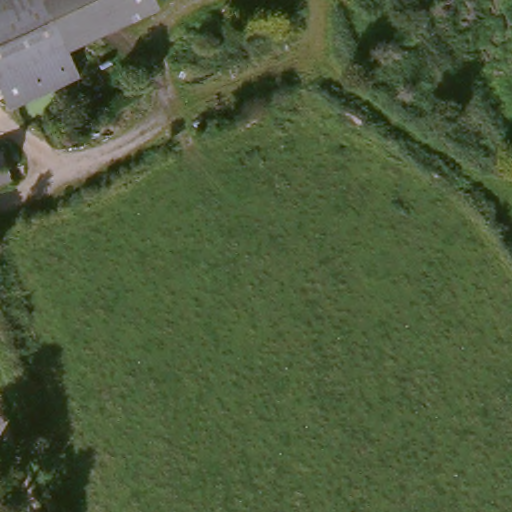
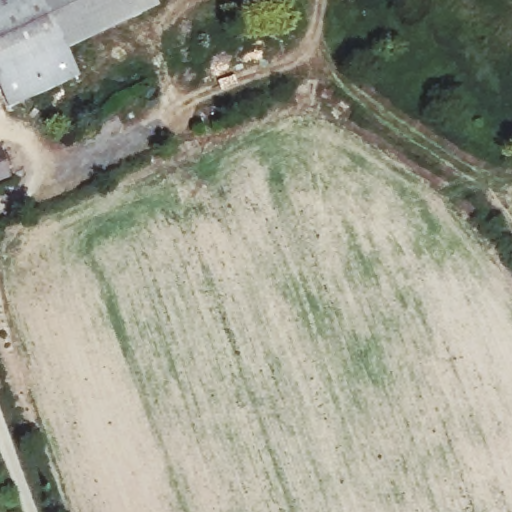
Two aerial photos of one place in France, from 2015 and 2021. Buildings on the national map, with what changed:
unchanged [(132,8),(66,39),(0,69),(0,0),(126,0),(132,8)]
unchanged [(126,0),(147,0),(132,8),(126,0)]
unchanged [(12,104),(4,88),(0,90),(0,69),(66,39),(79,72),(12,104)]
unchanged [(18,172),(9,175),(1,177),(0,177),(0,148),(9,145),(18,172)]

